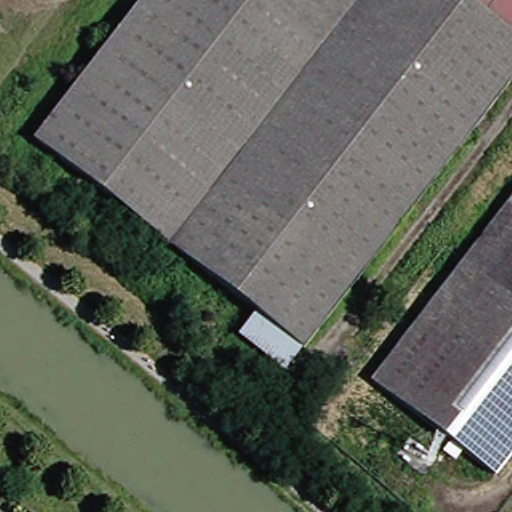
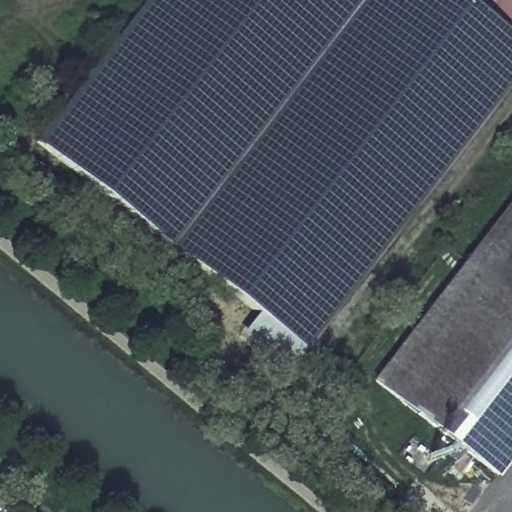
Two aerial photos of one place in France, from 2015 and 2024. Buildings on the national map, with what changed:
unchanged [(25,140),(136,0),(512,0),(512,27),(504,37),(512,44),(512,67),(294,347),(250,313),(25,140)]
unchanged [(492,478),(369,383),(512,197),(512,453),(492,478)]
unchanged [(232,336),(250,313),(294,347),(276,370),(232,336)]

